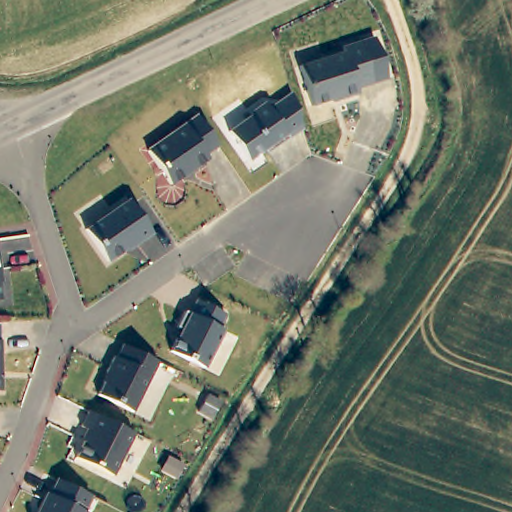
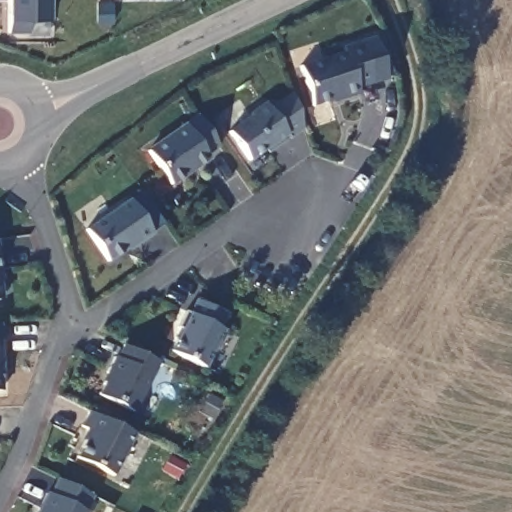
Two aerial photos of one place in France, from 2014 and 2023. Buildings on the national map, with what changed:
new [(29,19),(29,32),(9,32),(9,0),(49,0),(49,19),(29,19)]
unchanged [(345,53),(343,47),(374,37),(388,80),(357,90),(358,94),(332,102),(329,100),(312,106),(300,66),(345,53)]
unchanged [(252,115),(251,112),(265,102),(271,109),(292,94),(304,130),(267,154),(265,150),(251,161),(230,131),(252,115)]
unchanged [(185,123),(197,114),(220,146),(207,155),(211,160),(172,185),(149,150),(185,123)]
unchanged [(129,200),(153,235),(127,251),(126,251),(109,262),(87,230),(129,200)]
unchanged [(0,285),(0,272),(2,283),(0,285)]
unchanged [(0,300),(0,290),(1,300),(0,300)]
unchanged [(172,352),(170,351),(182,330),(177,328),(186,311),(190,314),(197,301),(226,315),(219,328),(224,330),(206,367),(172,352)]
unchanged [(2,391),(0,392),(0,341),(1,341),(2,391)]
unchanged [(105,382),(102,381),(115,356),(119,357),(122,345),(158,361),(134,411),(99,394),(105,382)]
unchanged [(86,441),(81,438),(86,428),(81,426),(90,412),(135,435),(114,476),(76,458),(86,441)]
unchanged [(47,492),(50,495),(56,480),(92,497),(85,512),(37,512),(47,492)]

